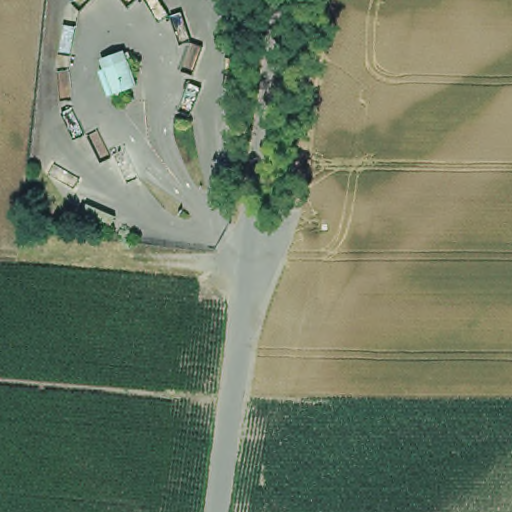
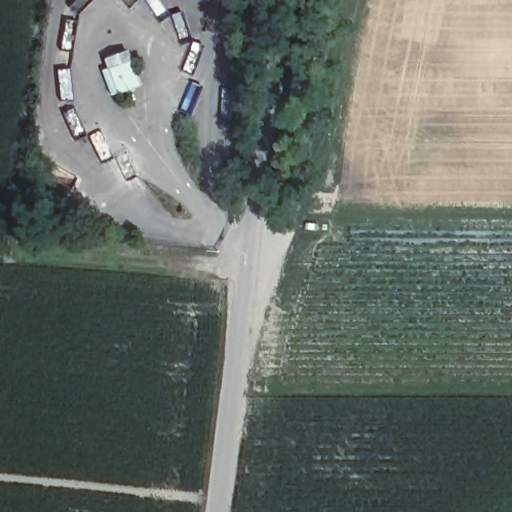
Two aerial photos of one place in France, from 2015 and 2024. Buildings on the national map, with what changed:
unchanged [(107,68),(125,62),(135,89),(116,94),(107,68)]

